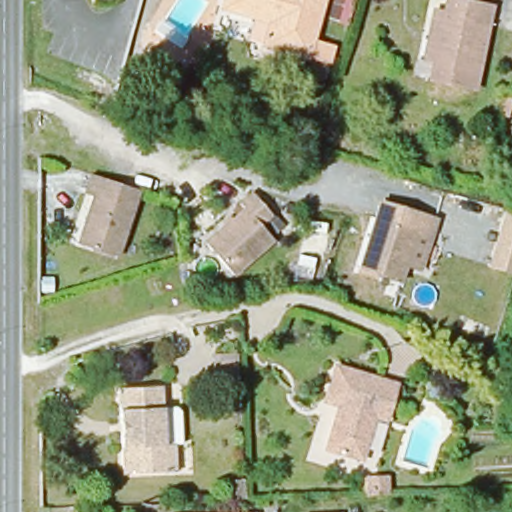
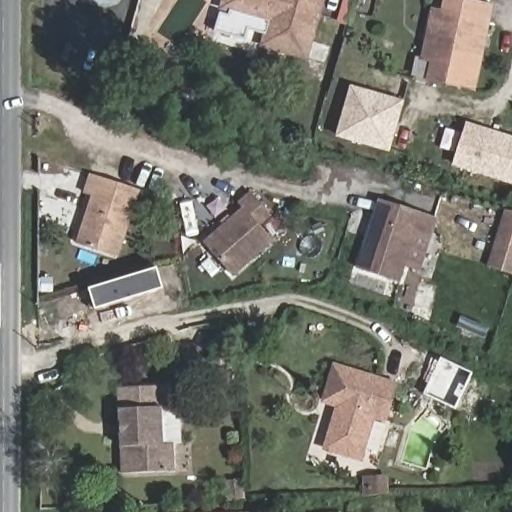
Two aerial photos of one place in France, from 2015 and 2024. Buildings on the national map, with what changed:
unchanged [(226,0),(323,0),(312,40),(336,47),(331,64),(265,46),(271,22),(224,9),(226,0)]
unchanged [(450,12),(452,0),(465,0),(497,7),(480,89),(435,79),(444,37),(434,35),(440,11),(450,12)]
new [(352,87),(402,102),(389,150),(338,136),(352,87)]
new [(512,139),(512,183),(453,164),(467,125),(512,139)]
unchanged [(140,191),(117,257),(77,244),(93,197),(87,195),(92,176),(140,191)]
unchanged [(233,276),(205,244),(244,210),(240,205),(252,193),(272,215),(260,226),(273,241),(233,276)]
unchanged [(386,207),(427,221),(410,273),(369,260),(386,207)]
unchanged [(507,207),(512,209),(512,275),(488,267),(507,207)]
unchanged [(240,351),(240,387),(221,388),(221,352),(240,351)]
unchanged [(375,417),(362,461),(326,450),(339,406),(325,402),(336,367),(397,385),(386,421),(375,417)]
unchanged [(162,409),(176,408),(180,412),(182,445),(174,445),(175,472),(122,475),(119,389),(162,387),(162,409)]
unchanged [(263,501),(261,488),(274,485),(274,486),(277,500),(263,501)]

